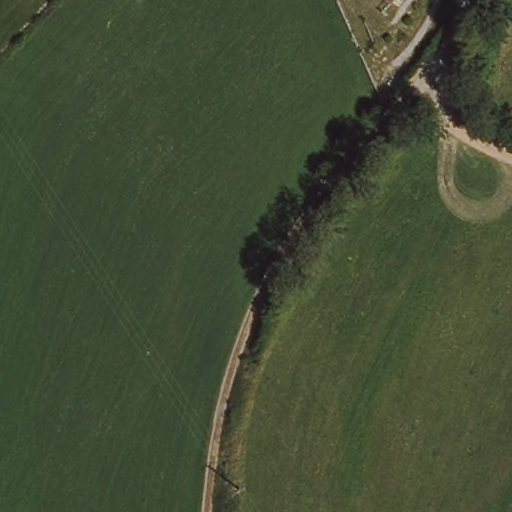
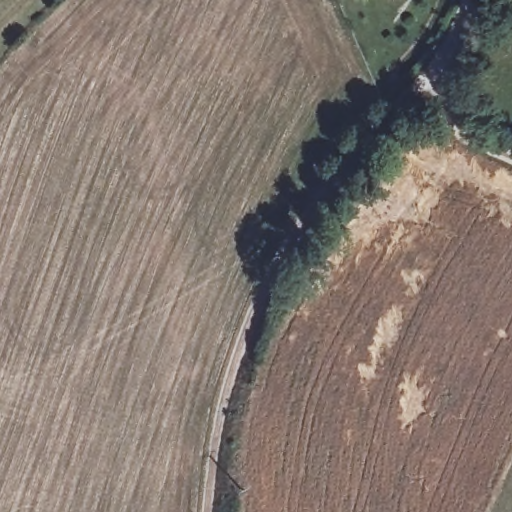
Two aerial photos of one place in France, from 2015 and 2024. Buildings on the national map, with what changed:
[]

